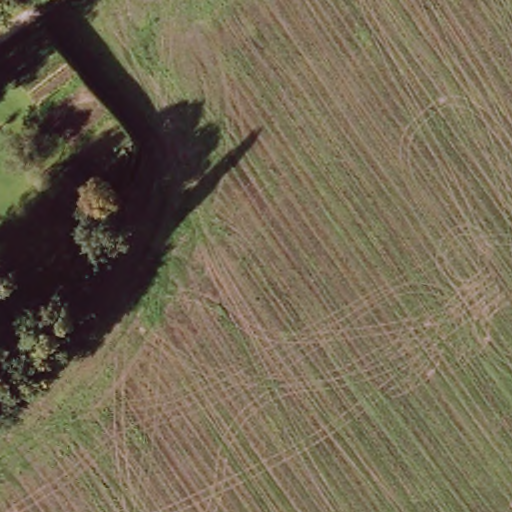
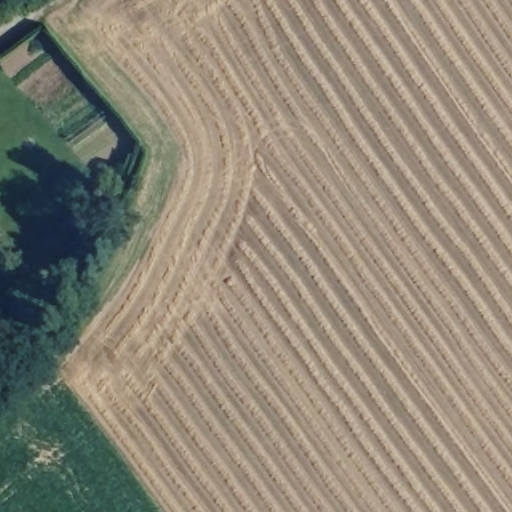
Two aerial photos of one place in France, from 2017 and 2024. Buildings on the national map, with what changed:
[]

